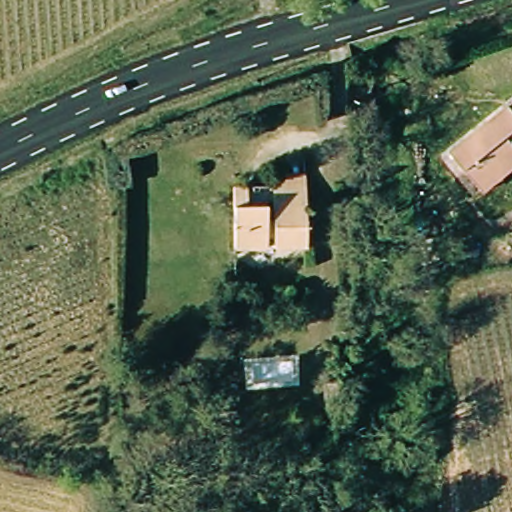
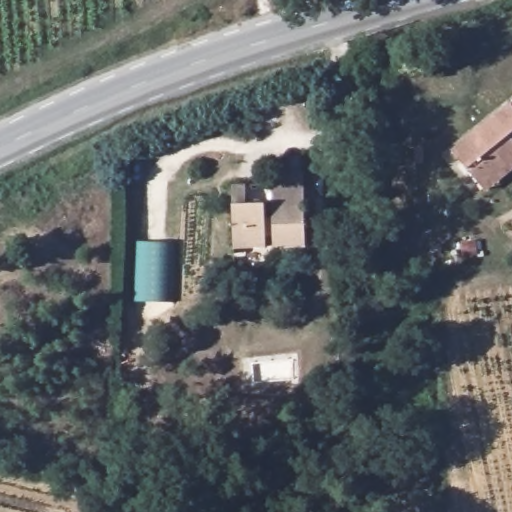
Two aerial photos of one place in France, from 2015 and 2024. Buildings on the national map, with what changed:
unchanged [(475,185),(454,152),(512,113),(512,143),(510,144),(512,146),(512,177),(482,195),(475,185)]
unchanged [(281,251),(279,241),(272,244),(273,254),(243,261),(231,199),(246,196),(250,215),(266,212),(268,224),(274,221),(269,193),(266,180),(302,172),(305,186),(315,243),(281,251)]
new [(175,244),(173,303),(133,303),(135,243),(175,244)]

